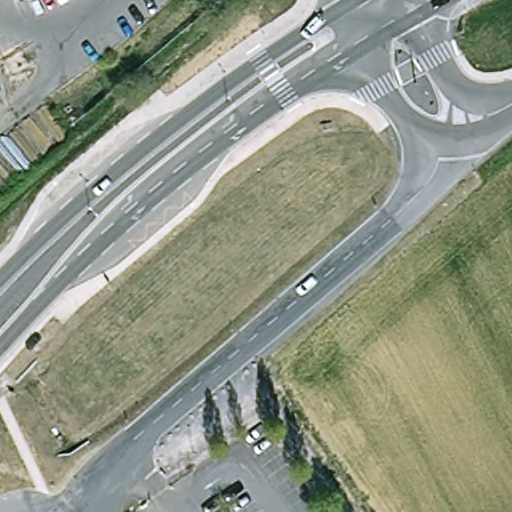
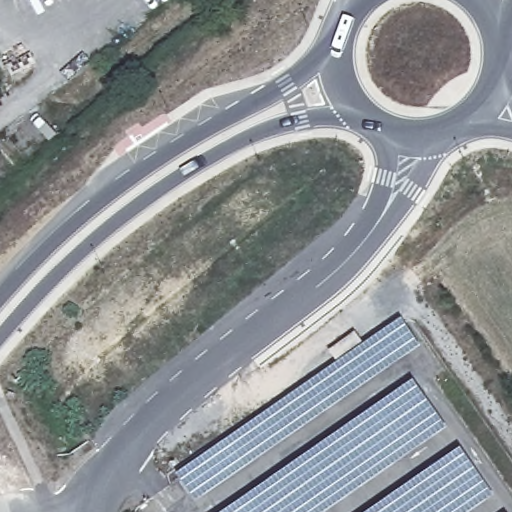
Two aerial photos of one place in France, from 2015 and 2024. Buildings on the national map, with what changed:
unchanged [(15,0),(22,0),(17,3),(15,0)]
new [(402,312),(420,339),(198,500),(179,473),(402,312)]
new [(352,323),(362,337),(336,357),(326,342),(352,323)]
new [(416,375),(449,421),(323,512),(226,512),(416,375)]
new [(463,441),(498,489),(466,512),(364,512),(463,441)]
new [(512,508),(512,512),(505,512),(512,507),(512,508)]

